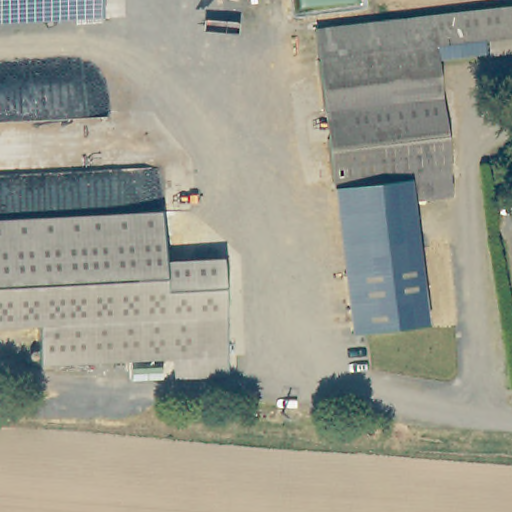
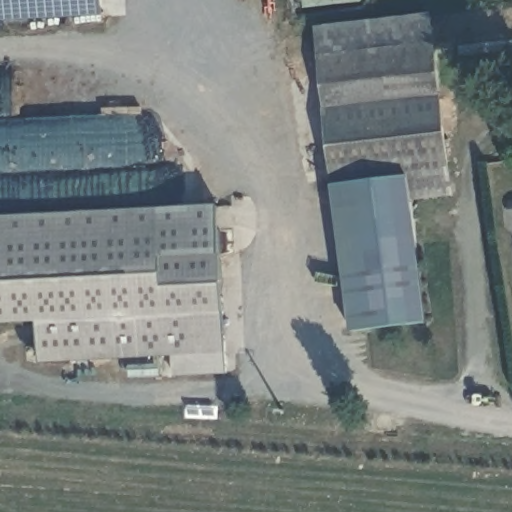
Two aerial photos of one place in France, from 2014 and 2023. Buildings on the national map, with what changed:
unchanged [(0,22),(0,0),(101,0),(102,16),(0,22)]
unchanged [(512,34),(436,44),(451,162),(457,215),(417,220),(412,197),(339,204),(317,27),(512,3),(512,34)]
unchanged [(412,197),(417,220),(433,345),(406,348),(358,354),(339,204),(412,197)]
new [(216,204),(219,253),(161,256),(159,207),(216,204)]
unchanged [(159,207),(161,256),(219,253),(224,349),(171,352),(36,358),(34,318),(0,320),(0,215),(159,207)]
unchanged [(225,369),(172,372),(171,352),(224,349),(225,369)]

